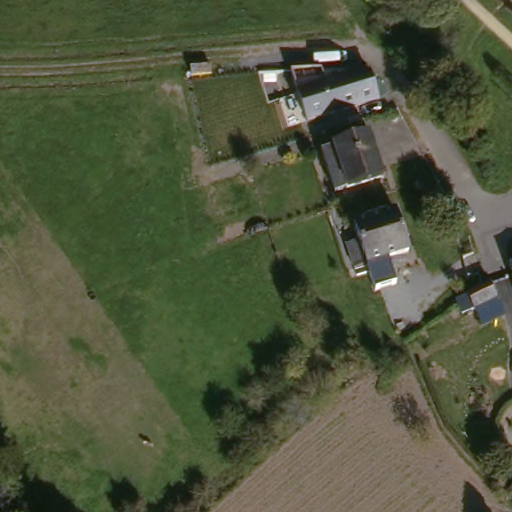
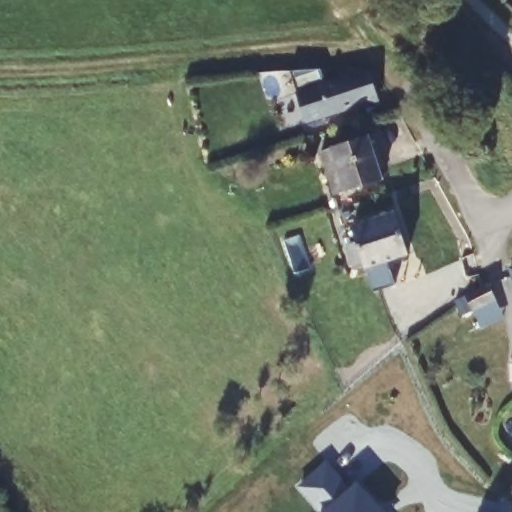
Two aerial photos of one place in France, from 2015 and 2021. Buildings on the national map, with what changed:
unchanged [(372,97),(287,126),(277,96),(342,74),(339,65),(362,69),(372,97)]
unchanged [(392,177),(345,191),(331,149),(378,135),(392,177)]
unchanged [(374,266),(360,225),(401,211),(414,251),(374,266)]
unchanged [(512,268),(510,263),(512,263),(512,268)]
unchanged [(496,302),(475,311),(466,296),(488,285),(496,302)]
new [(350,488),(360,480),(387,512),(321,512),(297,486),(327,460),(350,488)]

